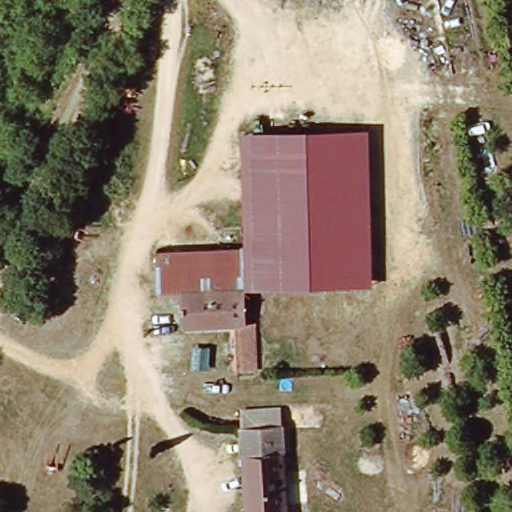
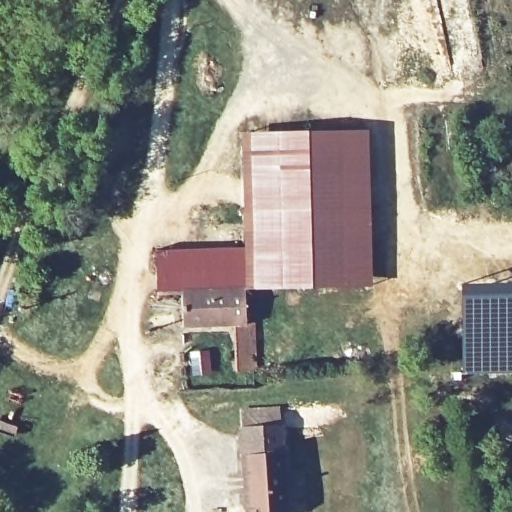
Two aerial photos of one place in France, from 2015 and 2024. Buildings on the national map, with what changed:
unchanged [(373,136),(372,292),(246,290),(247,250),(250,133),(373,136)]
unchanged [(162,252),(247,250),(246,290),(182,291),(162,291),(162,252)]
new [(460,283),(512,282),(512,373),(461,374),(460,283)]
unchanged [(236,325),(183,326),(182,291),(246,290),(247,323),(257,323),(257,372),(237,371),(236,325)]
unchanged [(238,418),(278,415),(288,512),(247,512),(238,418)]

